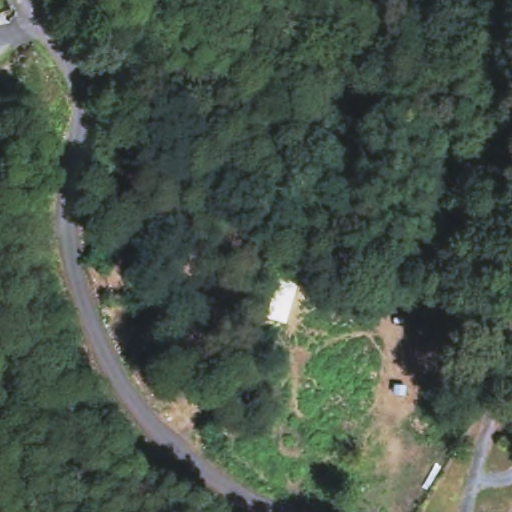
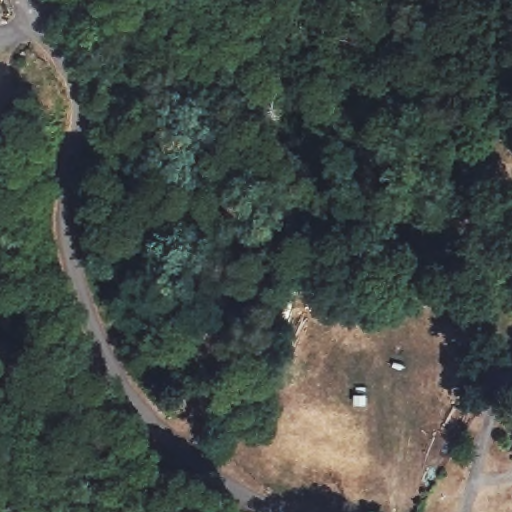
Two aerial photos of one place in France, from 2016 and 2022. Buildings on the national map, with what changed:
[]

